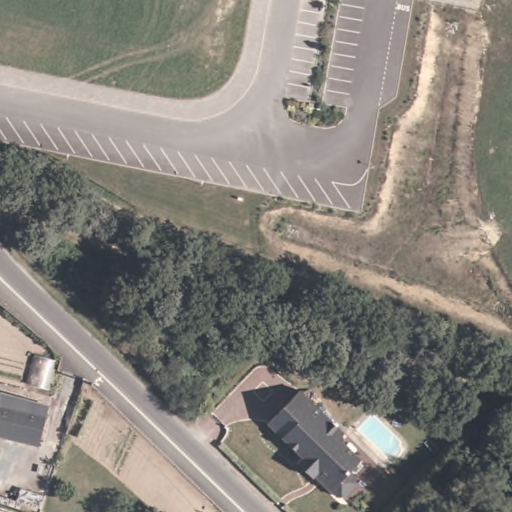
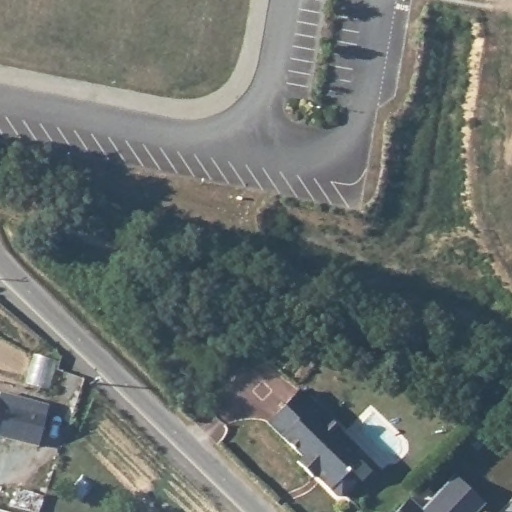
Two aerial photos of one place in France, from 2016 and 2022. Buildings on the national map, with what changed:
unchanged [(0,411),(0,391),(7,393),(6,397),(21,401),(22,390),(53,399),(42,444),(37,443),(0,411)]
unchanged [(302,394),(344,433),(343,444),(362,463),(353,473),(359,479),(357,489),(350,498),(340,499),(324,485),(327,482),(321,477),(316,481),(298,464),(304,459),(271,428),(302,394)]
unchanged [(0,437),(0,411),(37,443),(0,437)]
new [(408,500),(420,509),(454,474),(486,504),(478,512),(397,512),(408,500)]

